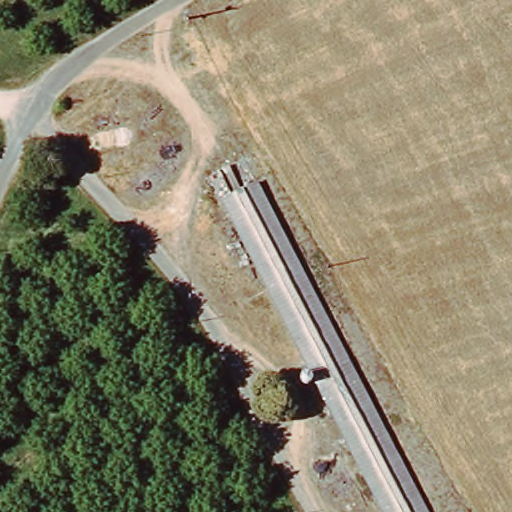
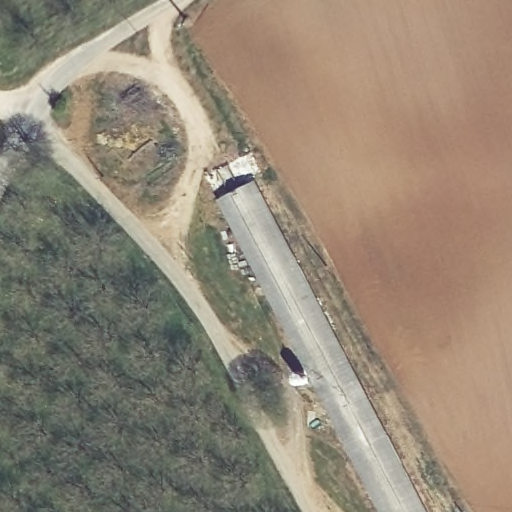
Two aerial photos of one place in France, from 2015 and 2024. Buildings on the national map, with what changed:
unchanged [(256,177),(417,512),(379,512),(223,193),(256,177)]

